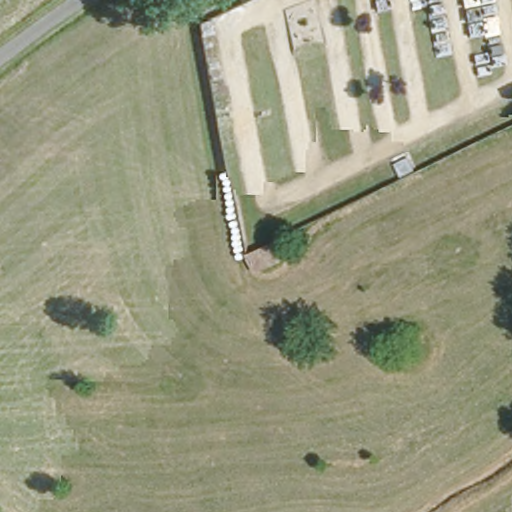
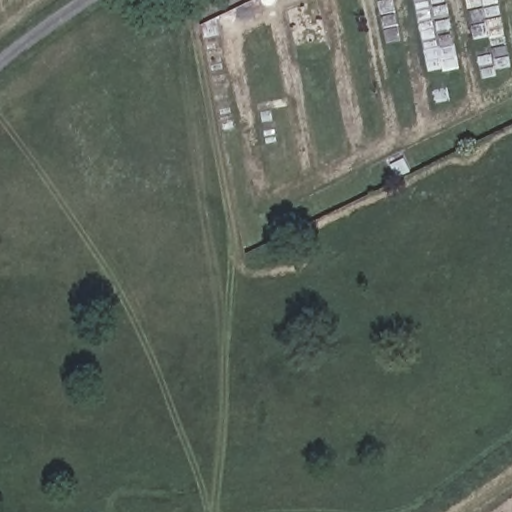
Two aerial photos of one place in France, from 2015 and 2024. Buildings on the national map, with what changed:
unchanged [(273,254),(245,267),(238,253),(267,238),(273,254)]

